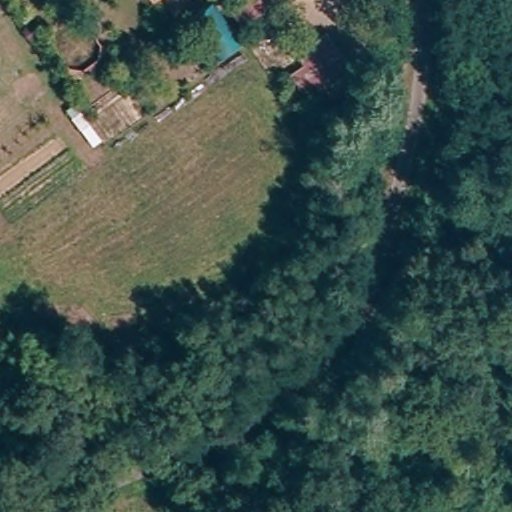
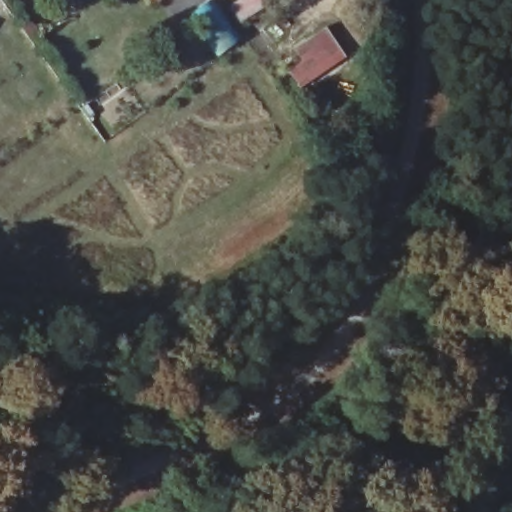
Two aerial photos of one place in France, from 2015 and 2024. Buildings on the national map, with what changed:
new [(300,89),(285,67),(330,36),(345,58),(300,89)]

